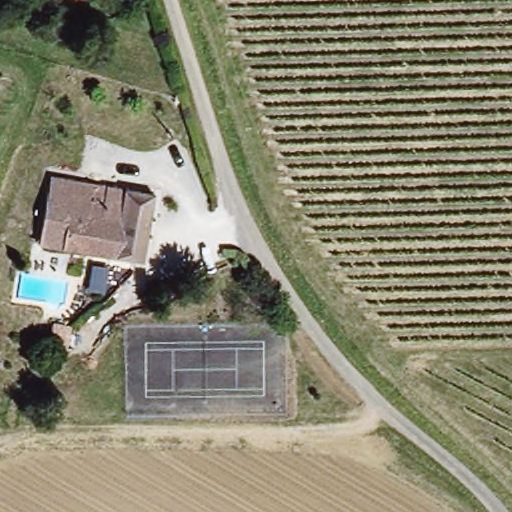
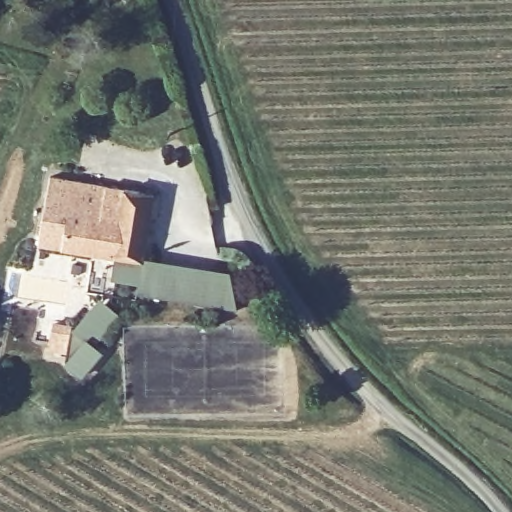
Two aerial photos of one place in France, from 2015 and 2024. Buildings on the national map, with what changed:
unchanged [(49,176),(151,193),(140,256),(39,240),(49,176)]
new [(139,283),(112,279),(117,252),(140,256),(230,273),(237,310),(137,295),(139,283)]
new [(99,298),(120,315),(95,345),(103,353),(82,378),(65,363),(72,331),(99,298)]
unchanged [(47,331),(49,320),(65,321),(64,335),(47,331)]

